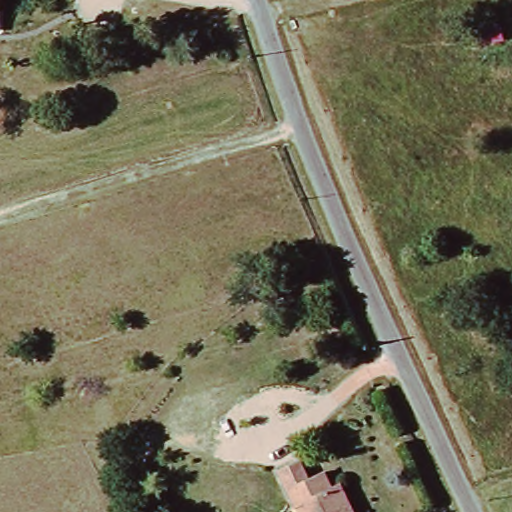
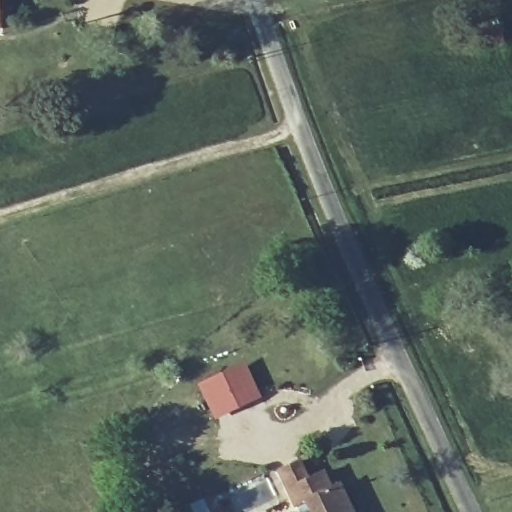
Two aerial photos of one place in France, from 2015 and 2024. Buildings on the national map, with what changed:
new [(198,384),(245,362),(261,397),(215,419),(198,384)]
unchanged [(286,509),(270,473),(296,461),(304,480),(320,473),(327,487),(337,483),(350,512),(295,512),(293,506),(286,509)]

